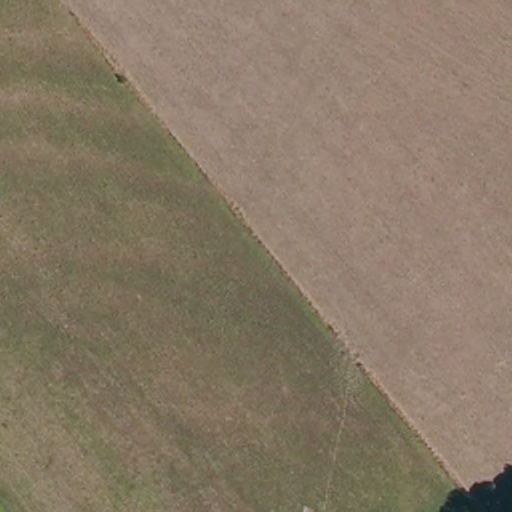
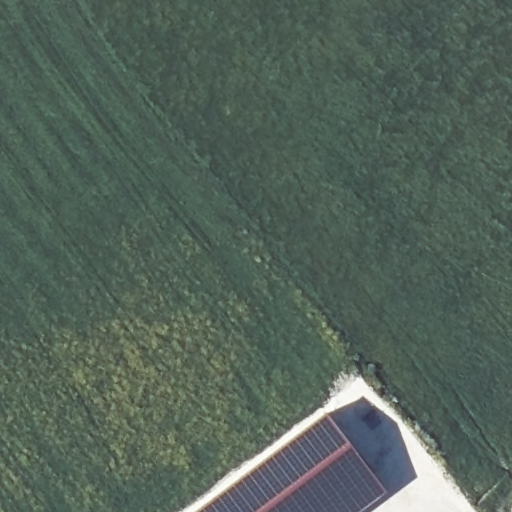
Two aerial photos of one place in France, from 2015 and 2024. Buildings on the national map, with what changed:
new [(209,496),(327,413),(359,452),(388,491),(361,512),(189,512),(209,496)]

